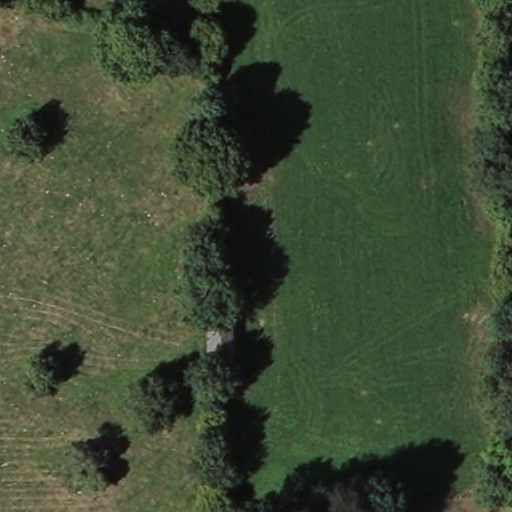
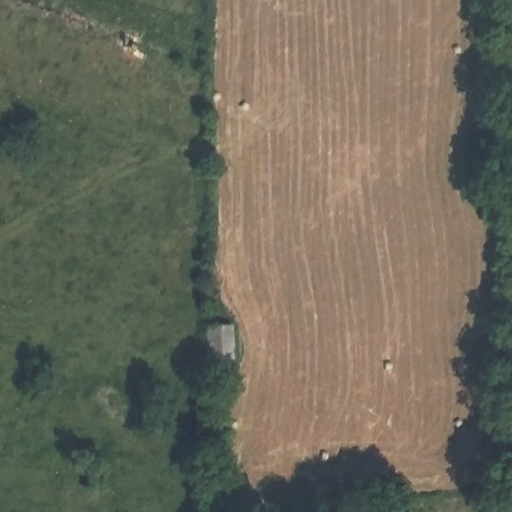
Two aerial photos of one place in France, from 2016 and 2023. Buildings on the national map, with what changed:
unchanged [(234,330),(232,373),(209,373),(210,339),(210,329),(234,330)]

